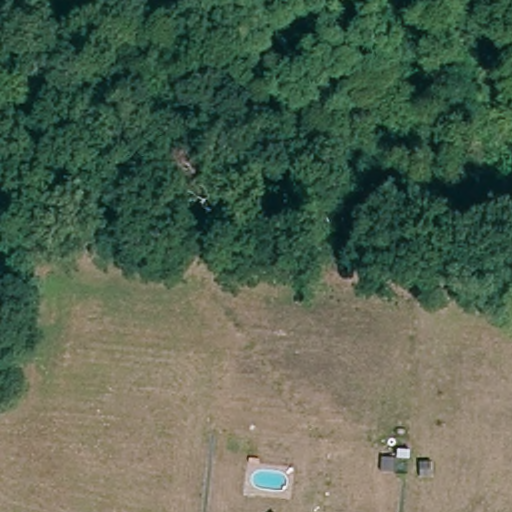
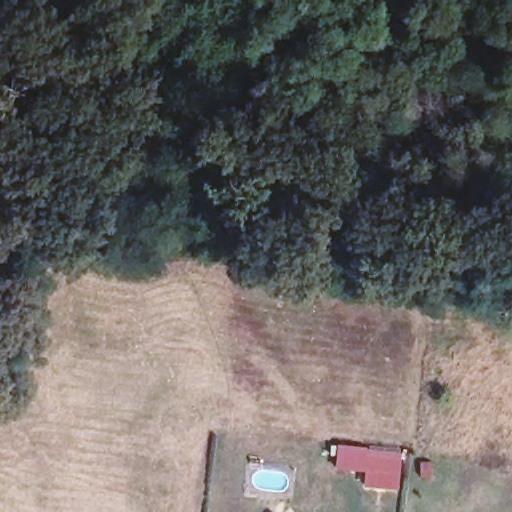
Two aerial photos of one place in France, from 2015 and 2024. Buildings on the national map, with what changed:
new [(336,445),(402,450),(399,491),(363,488),(364,472),(335,470),(336,445)]

